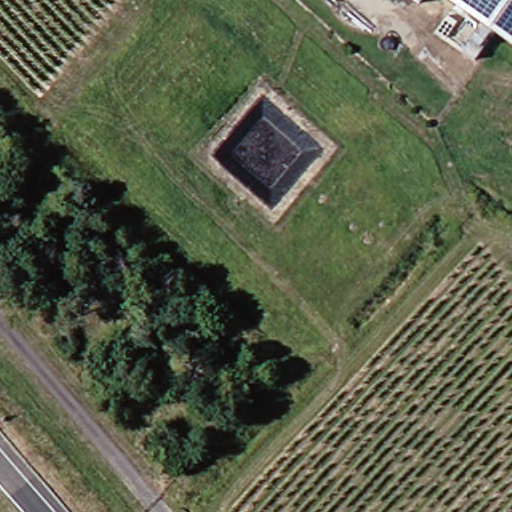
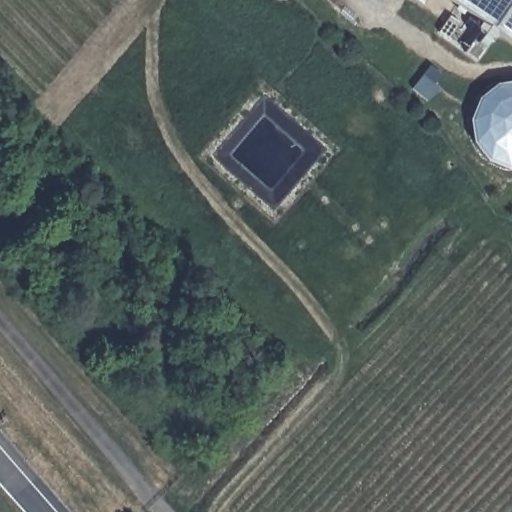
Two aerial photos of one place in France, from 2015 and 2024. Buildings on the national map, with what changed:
new [(413,11),(399,0),(421,0),(413,11)]
unchanged [(512,56),(432,0),(512,0),(512,56)]
new [(472,142),(469,120),(477,98),(494,84),(512,82),(512,168),(506,169),(486,161),(472,142)]

